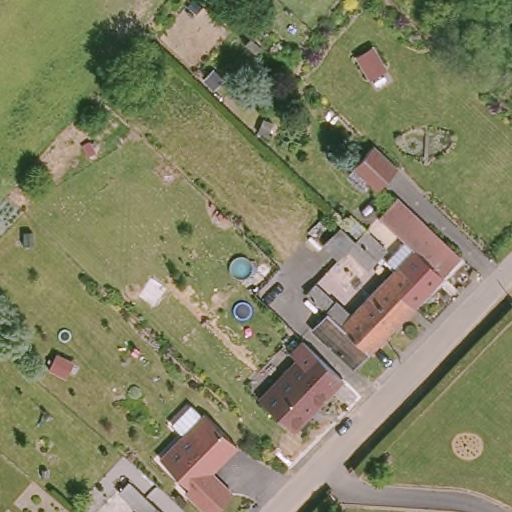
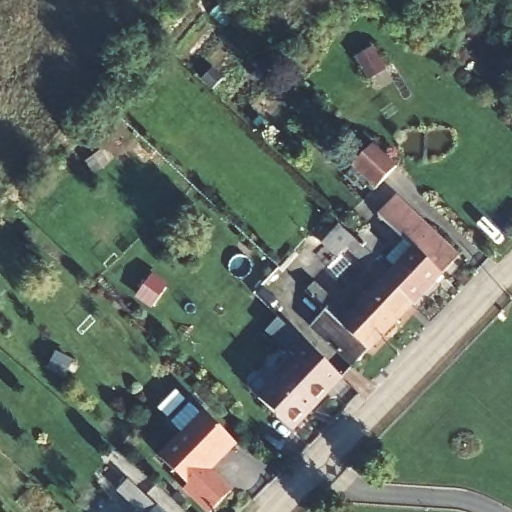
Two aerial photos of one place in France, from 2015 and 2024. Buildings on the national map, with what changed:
unchanged [(371,144),(394,167),(376,186),(352,165),(371,144)]
unchanged [(401,191),(464,252),(445,271),(417,241),(385,208),(401,191)]
unchanged [(320,239),(338,219),(355,235),(360,230),(365,226),(383,245),(378,250),(372,255),(367,262),(354,275),(344,285),(331,270),(334,266),(330,262),(335,255),(337,255),(320,239)]
unchanged [(417,241),(445,271),(417,300),(405,288),(415,276),(399,260),(417,241)]
unchanged [(387,271),(394,265),(399,260),(415,276),(405,288),(404,289),(416,301),(395,322),(375,300),(367,292),(387,271)]
unchanged [(316,280),(348,311),(367,292),(375,300),(395,322),(369,350),(347,328),(327,308),(307,288),(316,280)]
unchanged [(327,308),(347,328),(369,350),(354,365),(332,342),(312,323),(327,308)]
unchanged [(259,393),(296,358),(289,352),(302,337),(311,346),(342,377),(292,430),(259,393)]
unchanged [(187,482),(162,455),(206,410),(237,445),(213,470),(234,493),(214,512),(208,512),(182,487),(187,482)]
unchanged [(166,512),(144,512),(154,501),(166,512)]

